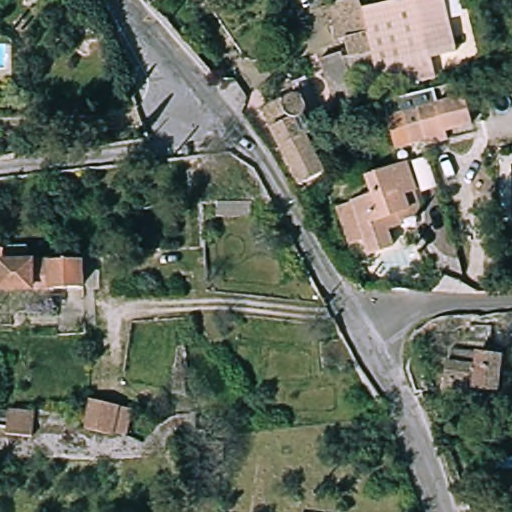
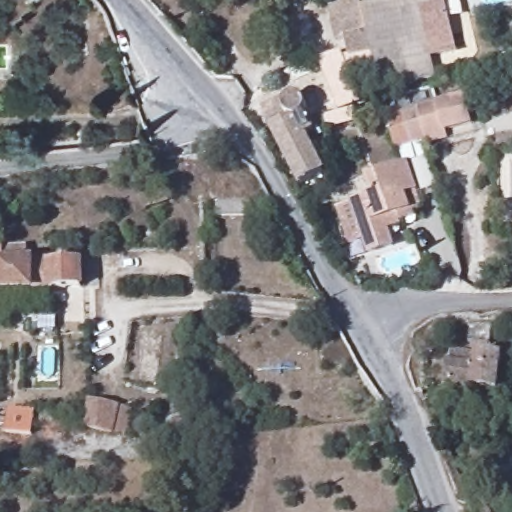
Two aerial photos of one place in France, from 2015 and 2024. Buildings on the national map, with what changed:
unchanged [(372,77),(353,83),(361,111),(336,118),(319,60),(341,53),(343,60),(355,56),(349,37),(336,41),(326,6),(346,0),(354,0),(358,16),(372,77)]
unchanged [(445,0),(457,56),(432,63),(436,79),(375,93),(372,77),(358,16),(429,0),(445,0)]
unchanged [(416,96),(464,83),(472,114),(447,120),(448,126),(428,133),(427,129),(425,123),(418,101),(416,96)]
unchanged [(416,95),(416,96),(418,101),(425,123),(427,129),(395,136),(387,104),(416,95)]
unchanged [(313,131),(307,134),(312,146),(304,150),(318,186),(295,195),(271,135),(263,115),(285,106),(300,100),(313,131)]
unchanged [(330,210),(342,205),(366,195),(360,179),(403,164),(417,201),(414,219),(394,226),(391,246),(362,258),(357,244),(346,249),(330,210)]
unchanged [(35,249),(37,257),(83,259),(84,288),(4,286),(5,270),(0,269),(0,248),(35,249)]
unchanged [(496,333),(497,341),(471,344),(469,323),(495,322),(496,333)]
unchanged [(430,344),(436,338),(443,336),(447,351),(430,355),(428,348),(430,344)]
unchanged [(471,361),(472,351),(500,354),(495,391),(440,385),(442,358),(471,361)]
unchanged [(87,427),(93,398),(125,406),(119,434),(87,427)]
unchanged [(2,433),(4,408),(30,410),(29,436),(2,433)]

